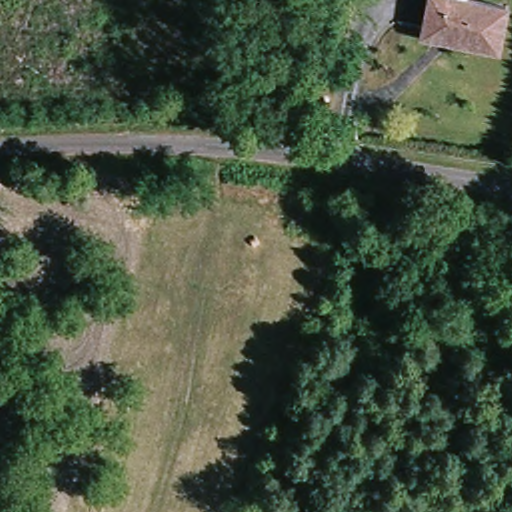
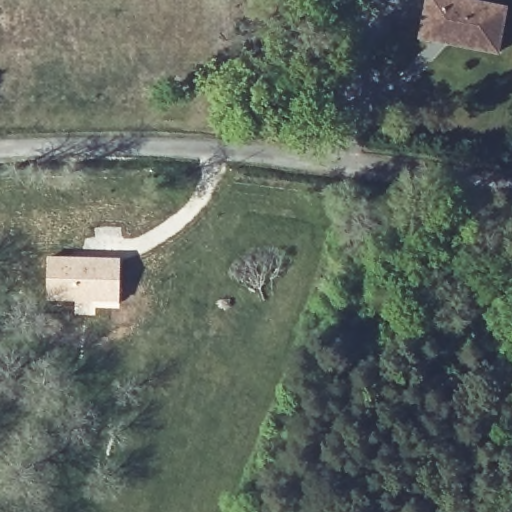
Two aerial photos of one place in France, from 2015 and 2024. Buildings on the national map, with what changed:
unchanged [(506,13),(497,58),(461,50),(421,41),(423,33),(430,0),(467,0),(466,4),(506,13)]
new [(121,257),(120,301),(48,299),(49,255),(121,257)]

